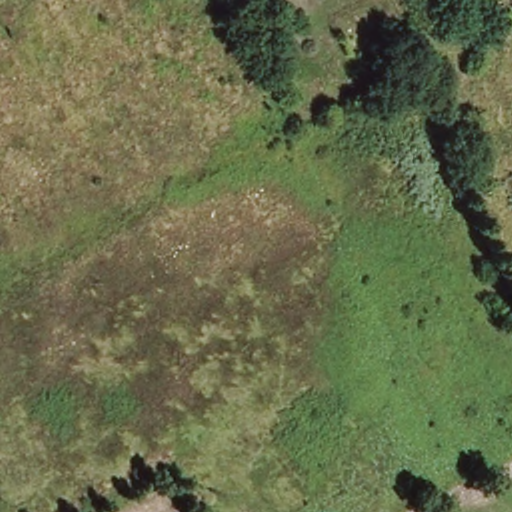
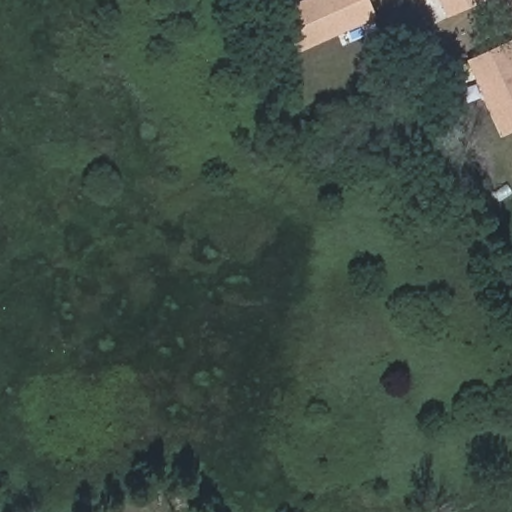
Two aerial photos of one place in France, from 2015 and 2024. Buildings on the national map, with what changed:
new [(308,0),(370,0),(377,16),(305,47),(288,9),(308,0)]
new [(452,15),(445,0),(483,0),(452,15)]
new [(512,131),(508,132),(474,61),(512,43),(512,131)]

